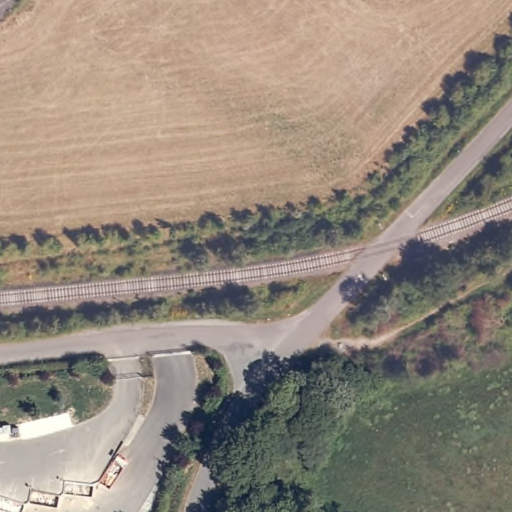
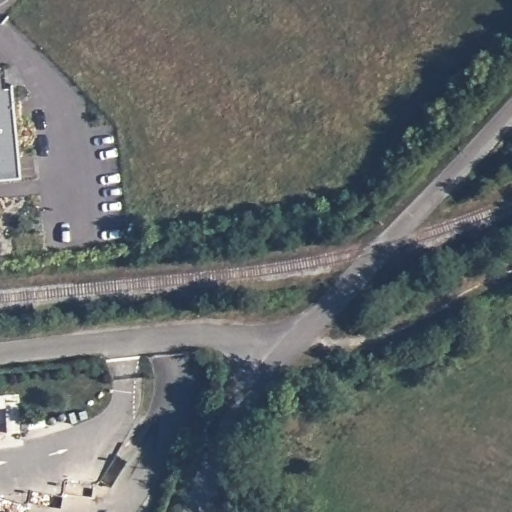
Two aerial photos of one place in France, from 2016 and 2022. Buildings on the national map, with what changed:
new [(3,65),(5,87),(13,87),(22,179),(0,181),(0,65),(3,65)]

